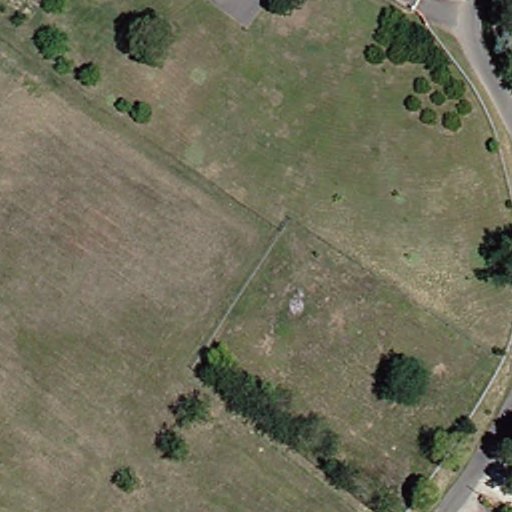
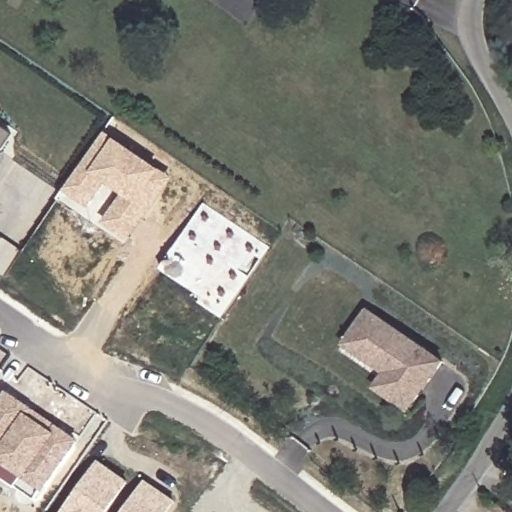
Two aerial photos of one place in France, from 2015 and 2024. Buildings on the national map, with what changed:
new [(8,135),(0,147),(0,129),(8,135)]
new [(132,240),(104,223),(124,195),(108,184),(91,209),(66,191),(106,132),(175,179),(132,240)]
new [(225,320),(201,303),(204,297),(161,267),(205,202),(272,247),(225,320)]
new [(340,347),(365,310),(444,363),(409,415),(372,390),(382,374),(340,347)]
new [(4,390),(74,437),(42,485),(0,456),(0,396),(4,390)]
new [(42,485),(34,497),(0,474),(0,456),(42,485)]
new [(105,512),(62,512),(97,465),(124,485),(105,512)]
new [(141,484),(170,502),(164,512),(123,512),(141,484)]

